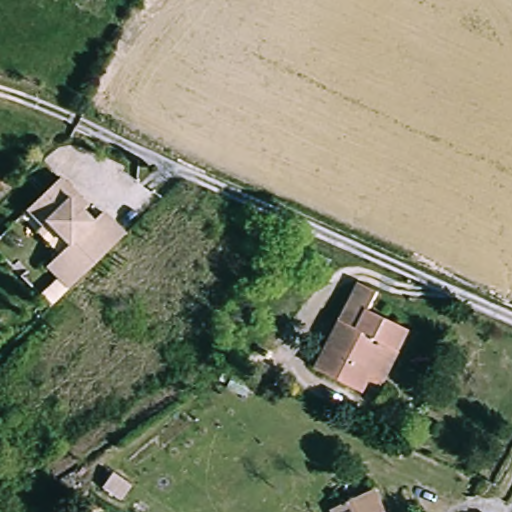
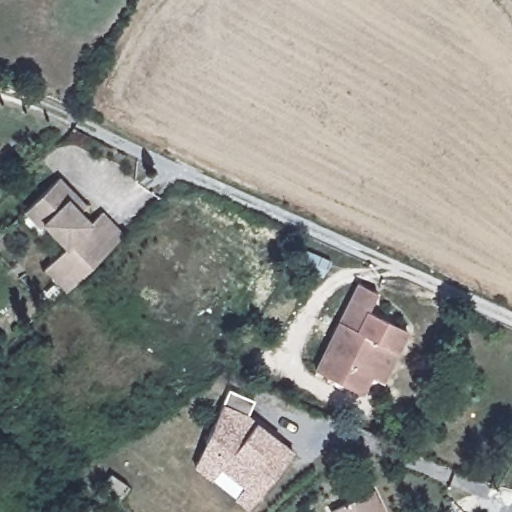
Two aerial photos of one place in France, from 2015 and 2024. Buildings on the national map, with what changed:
unchanged [(44,270),(51,264),(62,254),(68,248),(45,225),(42,229),(26,212),(60,180),(76,196),(88,209),(82,215),(92,225),(103,215),(125,238),(73,287),(66,293),(44,270)]
unchanged [(368,380),(363,390),(314,368),(356,277),(374,286),(366,305),(408,325),(398,346),(380,385),(368,380)]
new [(221,473),(213,485),(196,472),(226,395),(252,405),(246,421),(293,456),(259,502),(252,512),(249,512),(236,502),(245,491),(221,473)]
unchanged [(125,500),(116,512),(112,512),(96,500),(107,485),(125,500)]
unchanged [(326,510),(369,489),(382,512),(327,512),(326,510)]

